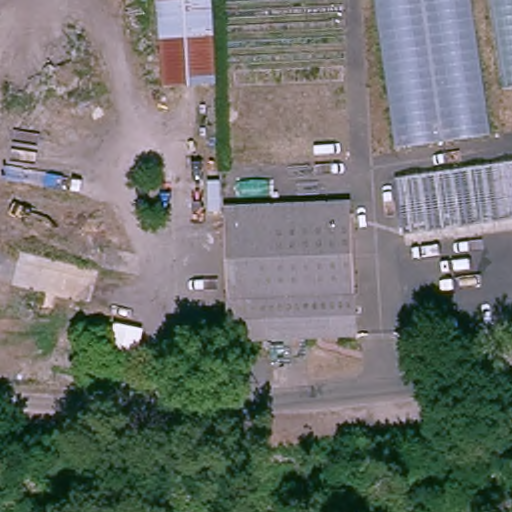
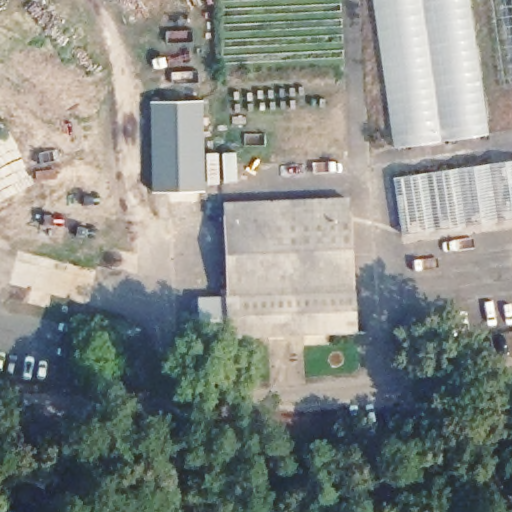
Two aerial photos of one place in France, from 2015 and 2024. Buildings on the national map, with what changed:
demolished [(211,0),(218,81),(164,85),(155,0),(211,0)]
unchanged [(388,146),(369,0),(469,0),(489,134),(388,146)]
unchanged [(512,0),(512,84),(501,85),(490,0),(512,0)]
new [(151,101),(204,100),(205,190),(152,190),(151,101)]
unchanged [(512,158),(512,223),(408,239),(398,175),(512,158)]
unchanged [(253,338),(253,322),(227,322),(228,201),(350,197),(360,332),(253,338)]
unchanged [(113,373),(120,338),(135,340),(133,348),(143,351),(135,378),(113,373)]

